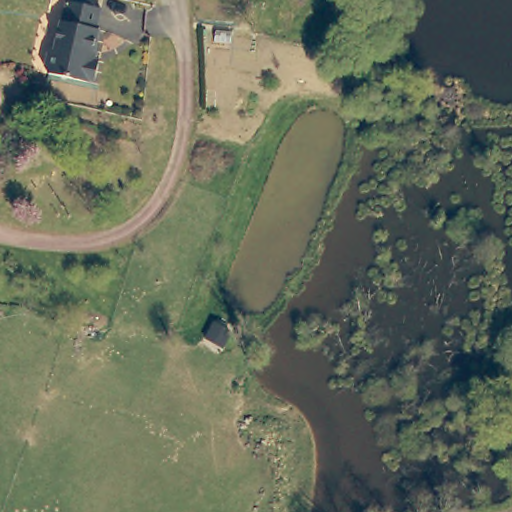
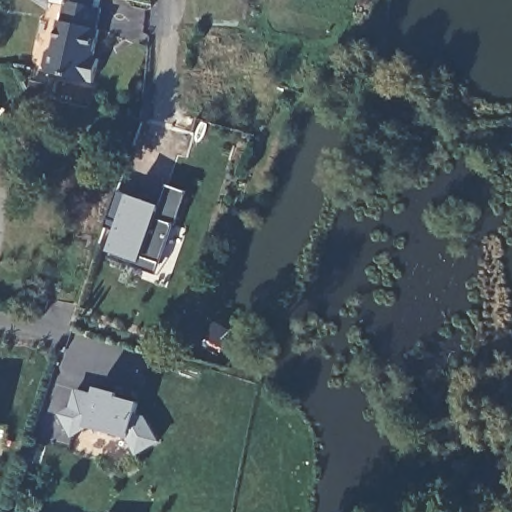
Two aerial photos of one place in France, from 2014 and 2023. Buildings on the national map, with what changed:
unchanged [(49,78),(45,71),(47,56),(54,52),(59,26),(61,26),(66,6),(100,13),(95,33),(97,34),(92,62),(97,63),(92,87),(49,78)]
new [(177,226),(175,225),(157,275),(111,259),(114,254),(110,253),(116,234),(104,227),(117,190),(130,195),(162,206),(167,186),(187,193),(177,226)]
unchanged [(215,322),(231,332),(222,348),(205,338),(215,322)]
new [(137,456),(127,437),(89,428),(71,437),(57,414),(69,407),(75,389),(95,395),(97,387),(120,394),(118,397),(141,403),(137,415),(147,418),(161,442),(137,456)]

